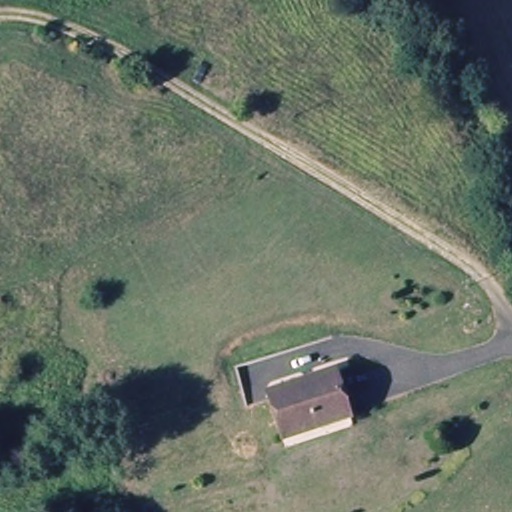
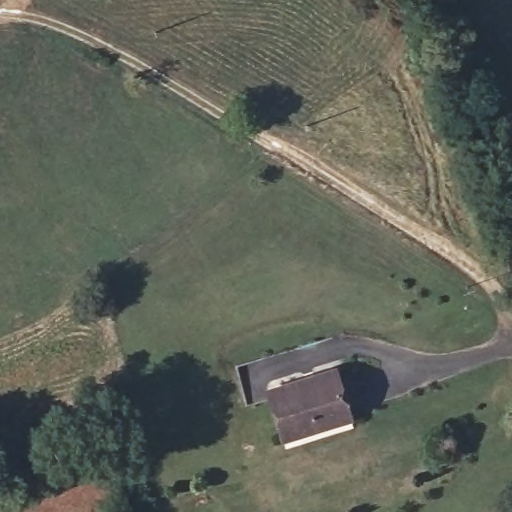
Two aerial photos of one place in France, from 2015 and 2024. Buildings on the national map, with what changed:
unchanged [(340,369),(351,418),(285,436),(271,387),(340,369)]

